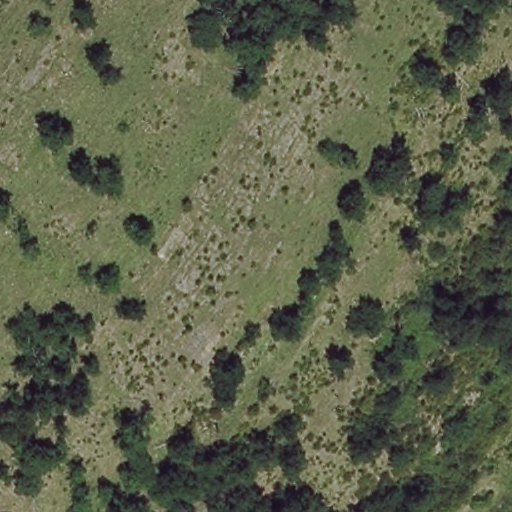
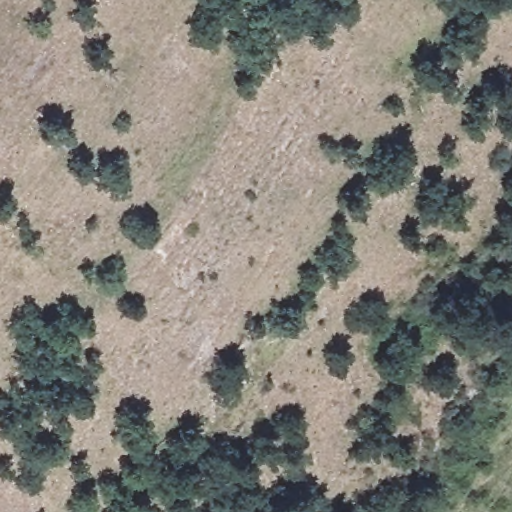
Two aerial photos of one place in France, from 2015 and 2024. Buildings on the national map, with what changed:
[]

